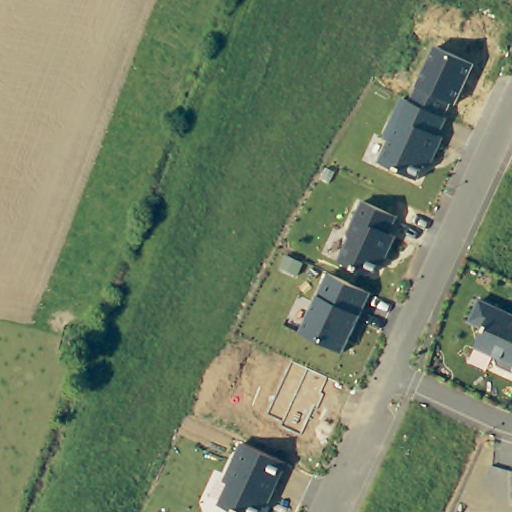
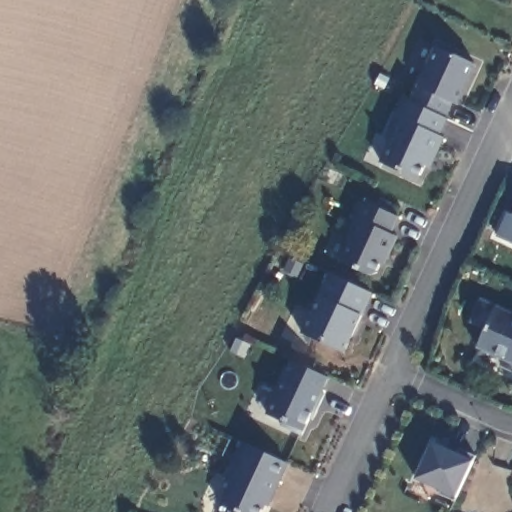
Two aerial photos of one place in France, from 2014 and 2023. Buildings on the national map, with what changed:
unchanged [(457,105),(453,104),(441,136),(445,137),(432,167),(422,172),(417,181),(380,164),(390,141),(383,137),(403,98),(410,101),(437,47),(475,66),(457,105)]
unchanged [(372,250),(365,267),(358,270),(329,256),(340,234),(338,228),(353,196),(387,212),(380,229),(386,232),(377,252),(372,250)]
unchanged [(327,344),(288,325),(317,266),(342,277),(356,285),(327,344)]
unchanged [(512,308),(512,362),(507,360),(504,367),(488,360),(485,350),(467,341),(475,322),(461,316),(471,293),(508,311),(512,308)]
unchanged [(267,413),(292,359),(330,377),(303,433),(267,413)]
new [(415,479),(432,440),(473,460),(457,498),(415,479)]
unchanged [(265,507),(262,512),(232,512),(219,506),(229,484),(224,481),(242,442),(287,465),(271,505),(265,507)]

